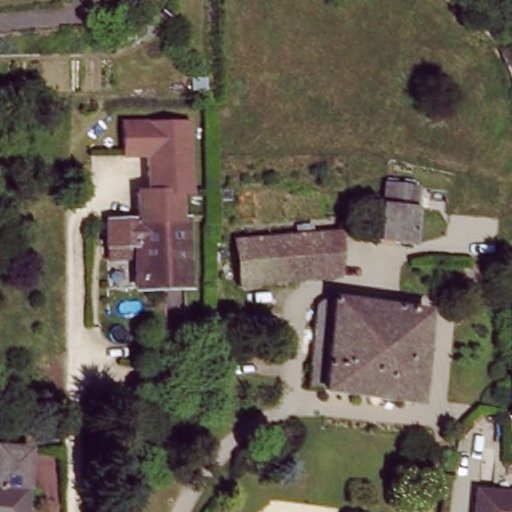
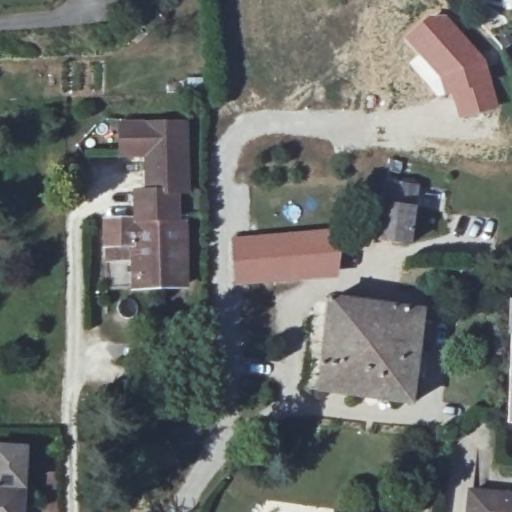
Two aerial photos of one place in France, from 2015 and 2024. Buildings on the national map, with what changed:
new [(428,14),(447,13),(485,59),(499,108),(457,120),(450,95),(442,97),(439,97),(408,62),(417,55),(401,37),(428,14)]
unchanged [(187,123),(186,221),(129,221),(130,192),(141,192),(141,159),(116,159),(117,123),(187,123)]
unchanged [(382,182),(408,185),(415,186),(410,245),(374,239),(382,182)]
unchanged [(107,289),(107,256),(136,257),(135,241),(107,241),(107,221),(129,221),(186,221),(186,288),(107,289)]
unchanged [(370,275),(330,271),(328,278),(236,290),(231,249),(319,235),(332,232),(374,239),(370,275)]
unchanged [(455,292),(454,259),(469,260),(482,261),(482,292),(455,292)]
unchanged [(315,395),(324,305),(431,319),(421,407),(315,395)]
unchanged [(512,305),(512,338),(505,337),(507,305),(512,305)]
unchanged [(512,429),(505,428),(505,337),(512,338),(512,429)]
unchanged [(19,451),(19,453),(20,491),(20,512),(0,512),(0,451),(19,451)]
unchanged [(512,498),(512,512),(467,512),(468,496),(512,498)]

